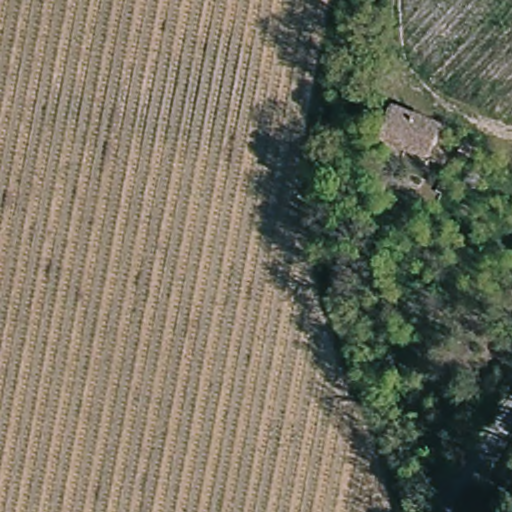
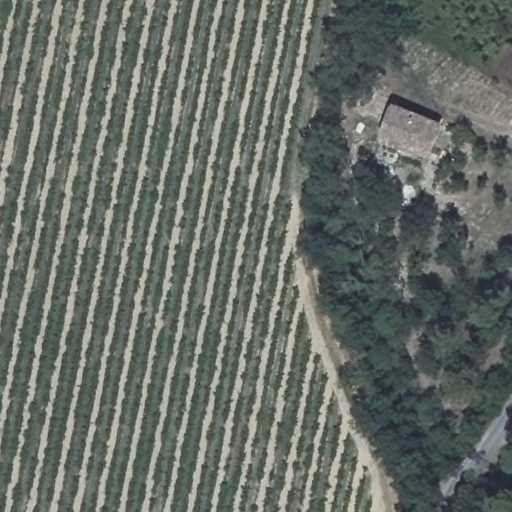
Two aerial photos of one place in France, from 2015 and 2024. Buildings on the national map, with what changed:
unchanged [(440,124),(425,163),(374,143),(390,105),(440,124)]
unchanged [(476,143),(470,156),(459,152),(464,138),(476,143)]

